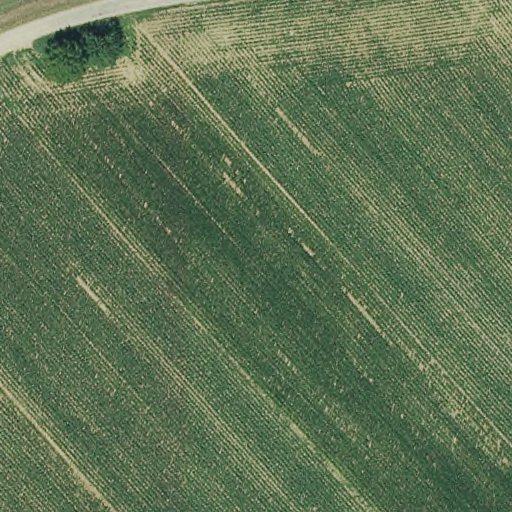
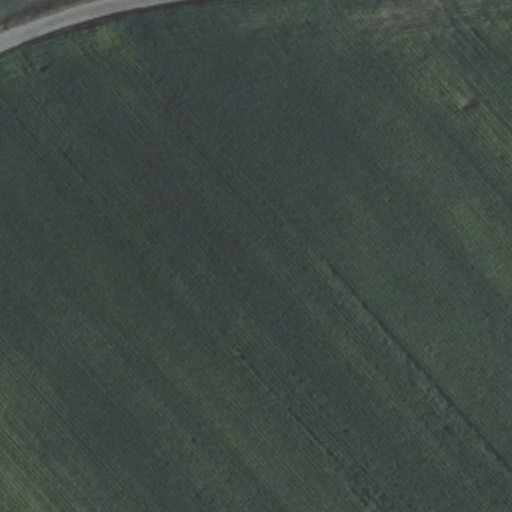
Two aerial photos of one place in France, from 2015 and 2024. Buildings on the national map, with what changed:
[]

